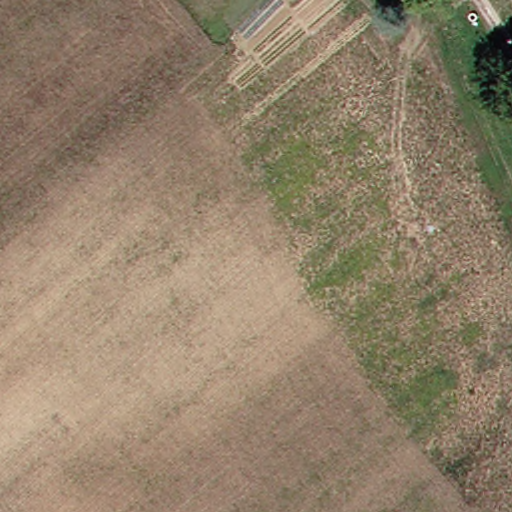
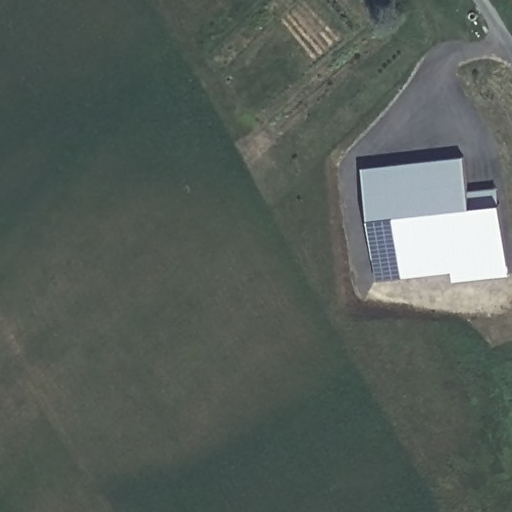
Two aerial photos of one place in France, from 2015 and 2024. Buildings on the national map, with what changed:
new [(363,169),(464,156),(467,187),(499,188),(500,204),(509,275),(454,282),(452,271),(377,281),(363,169)]

